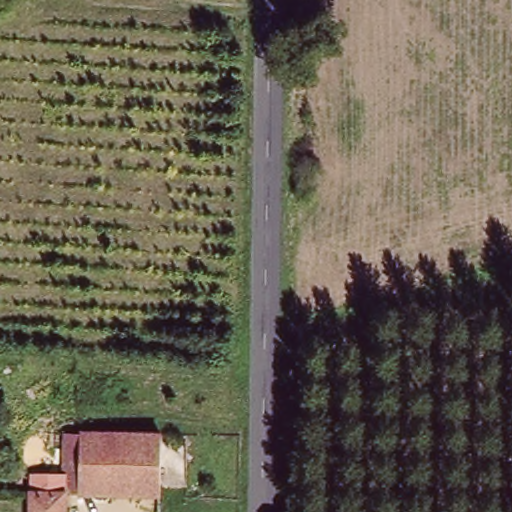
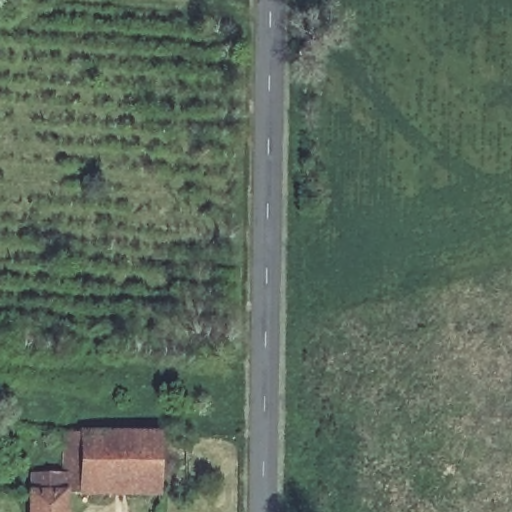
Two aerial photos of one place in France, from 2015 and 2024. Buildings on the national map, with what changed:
unchanged [(164,487),(85,486),(85,429),(165,430),(164,487)]
unchanged [(68,470),(67,512),(33,512),(34,469),(68,470)]

